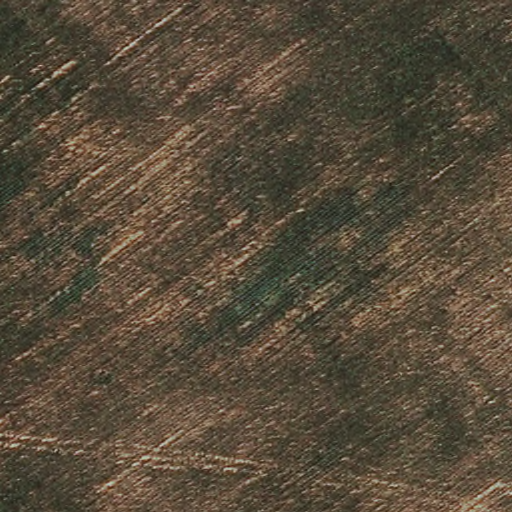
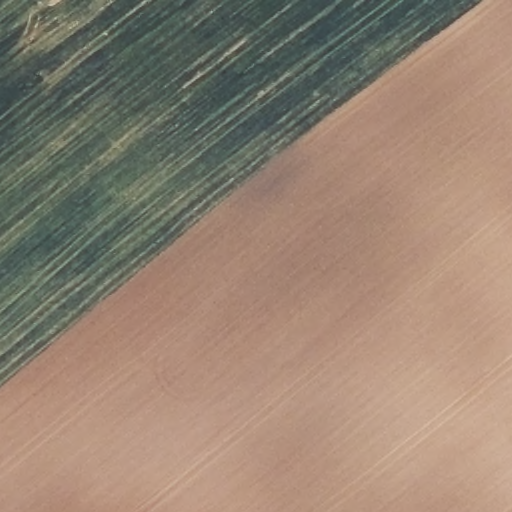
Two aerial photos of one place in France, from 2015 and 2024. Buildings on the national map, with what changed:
[]

